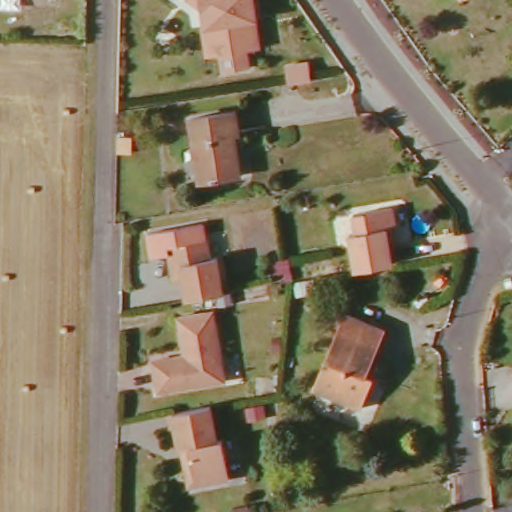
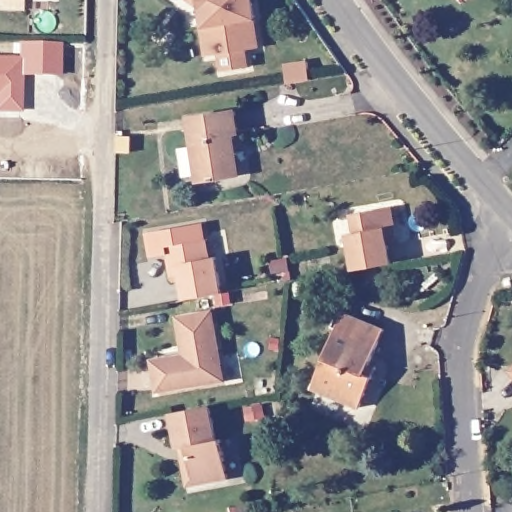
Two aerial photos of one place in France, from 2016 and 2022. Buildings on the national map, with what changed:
unchanged [(254,19),(258,48),(246,50),(248,67),(222,71),(221,61),(224,58),(220,54),(207,56),(201,26),(204,25),(202,11),(200,10),(200,6),(185,0),(253,0),(256,19),(254,19)]
new [(20,60),(20,43),(58,44),(58,76),(20,76),(20,112),(0,112),(0,59),(20,60)]
unchanged [(242,113),(244,132),(234,133),(239,177),(201,180),(195,116),(242,113)]
new [(117,136),(130,137),(130,153),(117,152),(117,136)]
unchanged [(355,270),(350,231),(357,230),(354,212),(393,205),(398,235),(389,236),(393,265),(355,270)]
unchanged [(187,298),(183,271),(171,272),(168,247),(210,240),(212,256),(219,255),(225,292),(187,298)]
unchanged [(152,363),(186,357),(180,318),(213,313),(223,383),(156,393),(152,363)]
unchanged [(351,318),(390,337),(372,380),(380,385),(365,415),(318,392),(351,318)]
unchanged [(219,442),(225,440),(230,480),(194,484),(189,448),(180,449),(175,416),(215,409),(219,442)]

